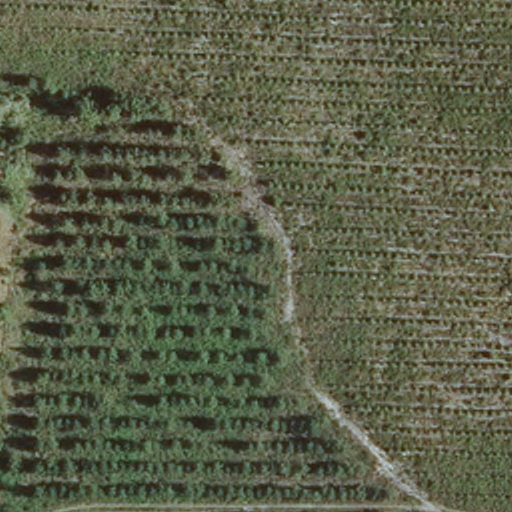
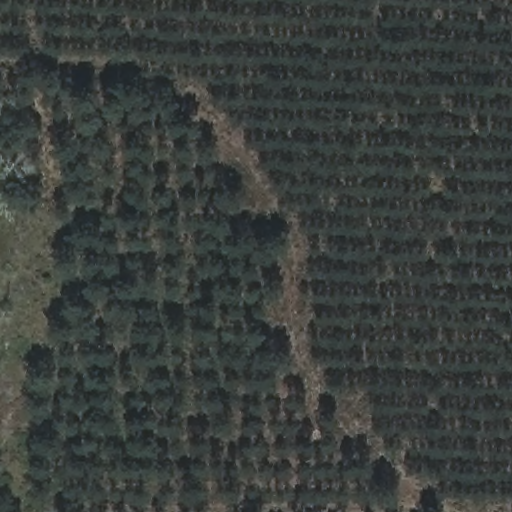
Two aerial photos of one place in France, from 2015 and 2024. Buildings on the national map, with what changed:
[]

